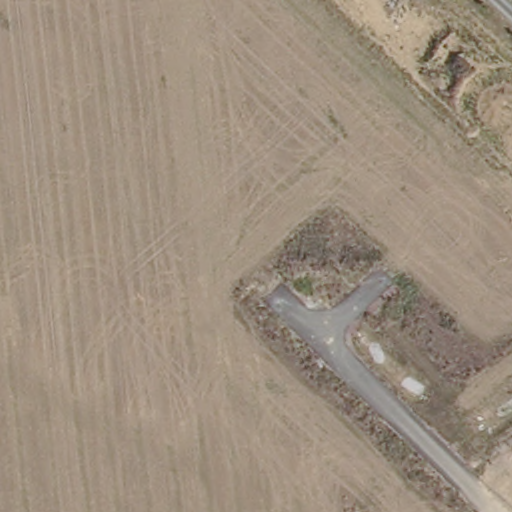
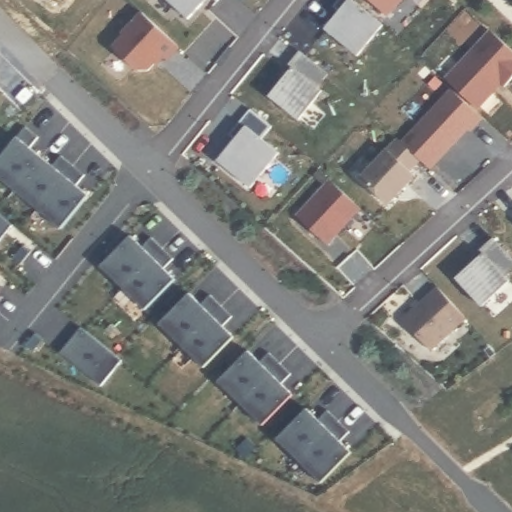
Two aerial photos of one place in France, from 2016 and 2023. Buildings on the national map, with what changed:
new [(336,10),(330,5),(335,0),(351,0),(380,23),(355,54),(322,28),(336,10)]
new [(369,0),(397,0),(384,14),(369,0)]
new [(120,35),(119,35),(139,11),(177,44),(165,60),(160,56),(147,69),(135,70),(108,48),(120,35)]
new [(490,32),(512,52),(512,79),(504,88),(499,83),(495,87),(495,91),(476,109),(445,80),(490,32)]
new [(266,95),(289,67),(285,63),(296,49),(328,75),(317,88),(322,92),(299,121),(266,95)]
new [(450,88),(480,115),(467,129),(465,127),(428,167),(400,141),(450,88)]
new [(269,125),(258,137),(276,152),(247,187),(215,160),(232,139),(226,134),(247,108),(269,125)]
new [(34,137),(26,147),(49,166),(57,155),(81,174),(72,185),(85,195),(57,229),(0,183),(0,153),(21,126),(34,137)]
new [(396,137),(420,159),(409,171),(412,174),(385,203),(358,178),(396,137)]
new [(327,178),(358,207),(325,244),(294,215),(327,178)]
new [(0,236),(0,218),(9,225),(0,236)]
new [(127,235),(139,246),(149,237),(160,248),(120,288),(97,266),(127,235)]
new [(507,280),(480,305),(454,277),(481,252),(478,248),(491,237),(512,260),(512,267),(503,275),(507,280)]
new [(120,288),(160,248),(170,258),(161,268),(172,279),(142,310),(120,288)]
new [(435,286),(464,317),(430,350),(400,318),(435,286)]
new [(187,293),(198,304),(207,294),(219,305),(179,346),(156,324),(187,293)]
new [(179,346),(219,305),(230,316),(220,326),(231,337),(201,368),(179,346)]
new [(77,327),(119,360),(98,386),(57,353),(77,327)]
new [(246,350),(257,362),(266,352),(277,363),(238,404),(215,382),(246,350)]
new [(238,404),(277,363),(288,374),(280,383),(291,394),(260,425),(238,404)]
new [(305,408),(316,419),(325,410),(336,421),(297,461),(275,439),(305,408)]
new [(297,461),(336,421),(348,432),(338,441),(350,452),(320,483),(297,461)]

